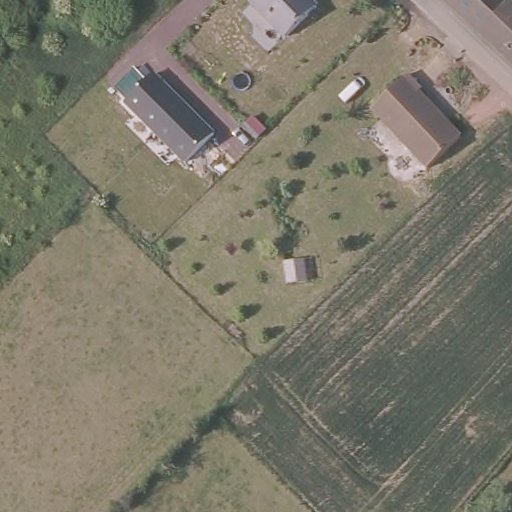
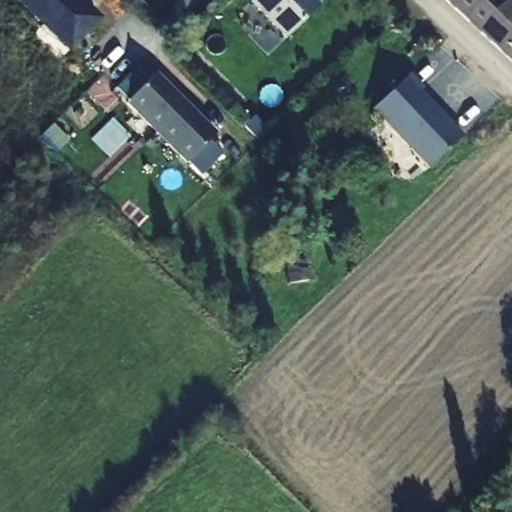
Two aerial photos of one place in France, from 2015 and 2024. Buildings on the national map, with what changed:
new [(101,19),(69,52),(15,0),(81,0),(101,19)]
unchanged [(252,3),(255,0),(316,0),(319,2),(287,37),(252,3)]
unchanged [(442,0),(512,0),(512,61),(442,0)]
unchanged [(215,131),(185,164),(124,103),(155,72),(215,131)]
unchanged [(404,76),(418,90),(415,93),(459,134),(427,165),(372,110),(404,76)]

